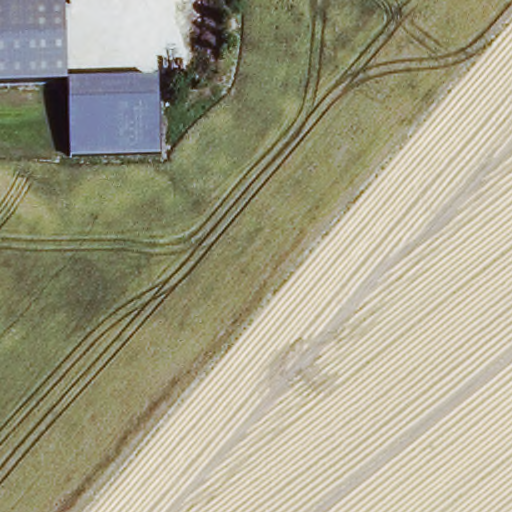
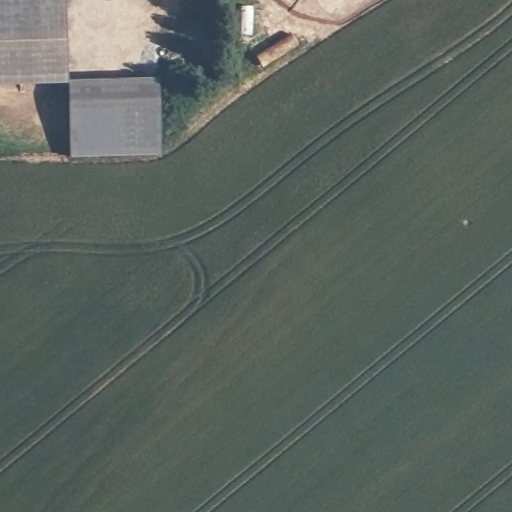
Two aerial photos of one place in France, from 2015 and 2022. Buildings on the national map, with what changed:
unchanged [(65,87),(0,89),(0,0),(64,0),(65,87)]
unchanged [(156,83),(158,155),(68,160),(65,87),(156,83)]

